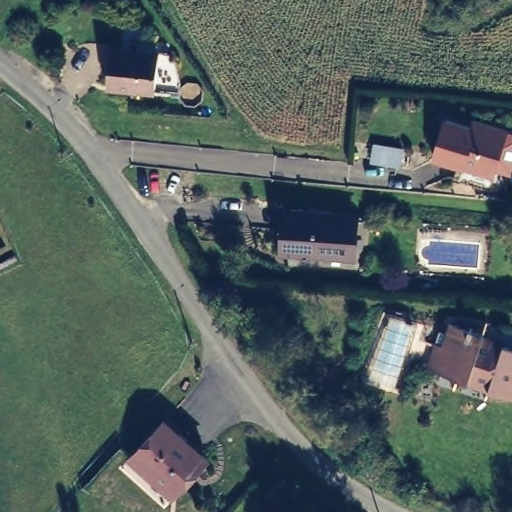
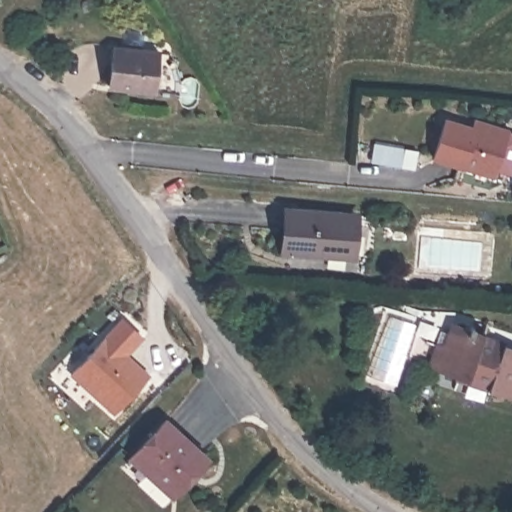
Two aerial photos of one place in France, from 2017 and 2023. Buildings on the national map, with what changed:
unchanged [(162,52),(158,91),(113,86),(117,47),(162,52)]
unchanged [(462,172),(432,164),(444,125),(471,132),(473,126),(506,136),(493,176),(492,182),(462,172)]
unchanged [(346,215),(342,257),(281,252),(285,210),(346,215)]
new [(69,373),(122,316),(145,336),(128,354),(151,375),(113,414),(69,373)]
unchanged [(463,325),(465,321),(467,322),(470,323),(470,327),(477,330),(480,331),(480,338),(498,346),(501,341),(512,346),(512,384),(509,393),(485,385),(485,379),(465,372),(462,377),(439,367),(445,346),(444,345),(440,344),(448,320),(463,325)]
unchanged [(205,464),(175,497),(148,473),(145,477),(130,462),(163,426),(205,464)]

